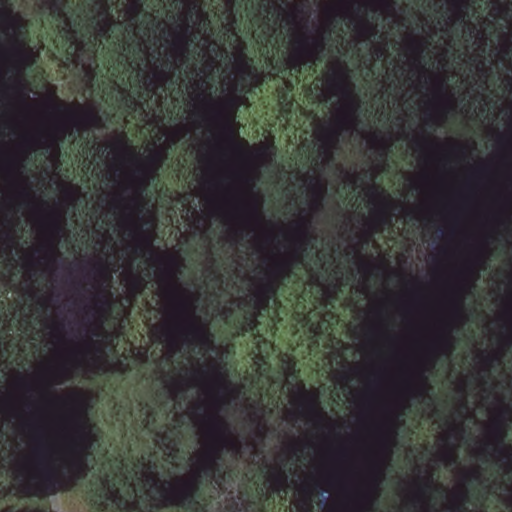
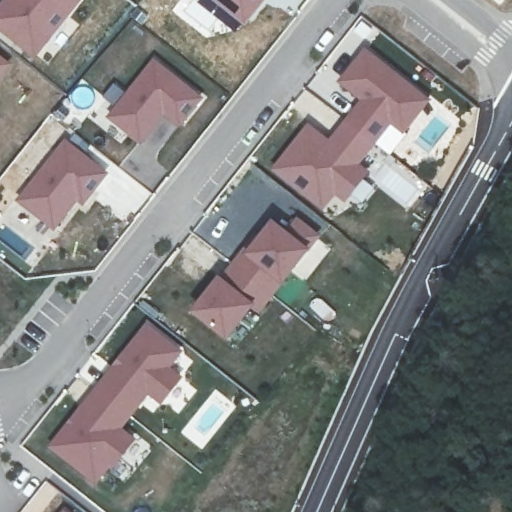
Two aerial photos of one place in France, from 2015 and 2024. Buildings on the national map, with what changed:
new [(0,32),(0,4),(3,0),(81,0),(35,59),(0,32)]
new [(236,2),(223,4),(218,0),(262,0),(251,14),(236,2)]
new [(431,98),(404,133),(392,124),(361,163),(371,171),(346,204),(335,196),(322,209),(271,170),(309,123),(330,139),(360,100),(338,83),(364,46),(431,98)]
new [(0,78),(0,54),(11,63),(0,78)]
new [(153,58),(204,98),(178,129),(163,117),(140,146),(106,118),(153,58)]
new [(108,173),(83,206),(78,202),(55,232),(15,199),(64,138),(108,173)]
new [(320,234),(259,314),(252,309),(226,341),(188,311),(219,273),(221,275),(255,233),(258,234),(272,219),(288,230),(296,217),(320,234)]
new [(183,352),(171,367),(183,377),(161,406),(149,396),(123,428),(137,439),(112,472),(109,469),(96,485),(47,448),(146,322),(183,352)]
new [(63,509),(67,512),(61,512),(63,509)]

